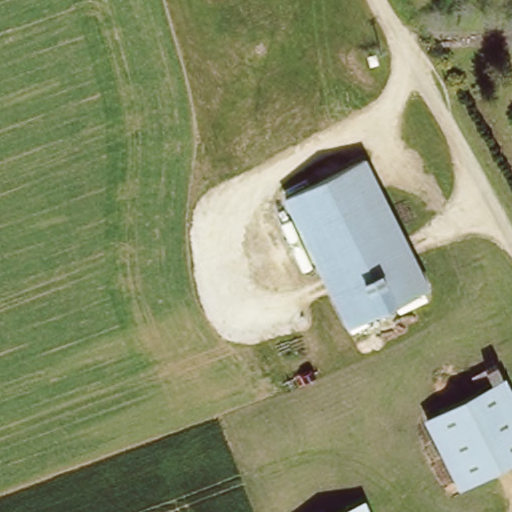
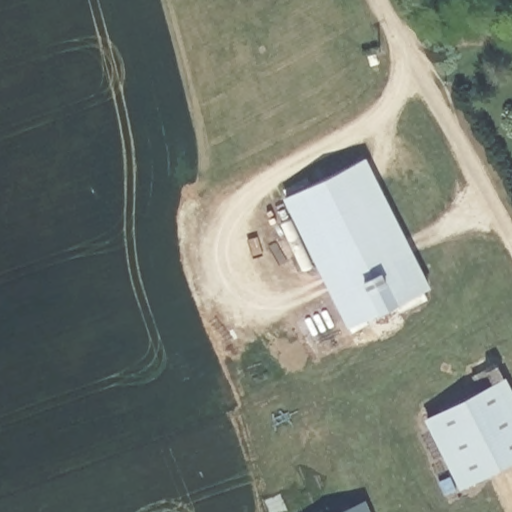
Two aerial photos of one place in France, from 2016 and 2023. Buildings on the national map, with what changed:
unchanged [(430,290),(341,329),(285,199),(373,160),(430,290)]
unchanged [(497,360),(505,372),(478,387),(470,374),(497,360)]
unchanged [(512,458),(473,480),(438,413),(505,377),(512,391),(512,458)]
unchanged [(366,512),(344,512),(361,504),(366,512)]

